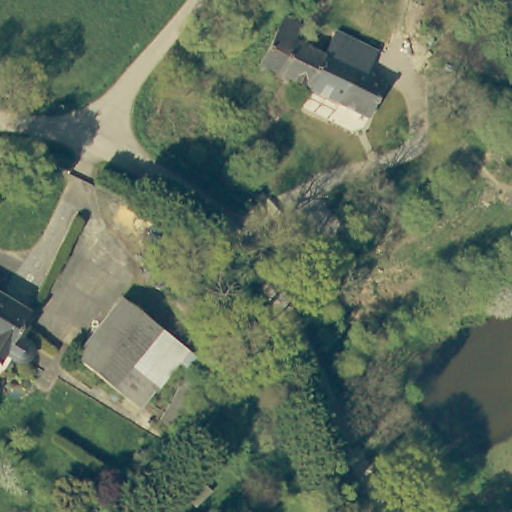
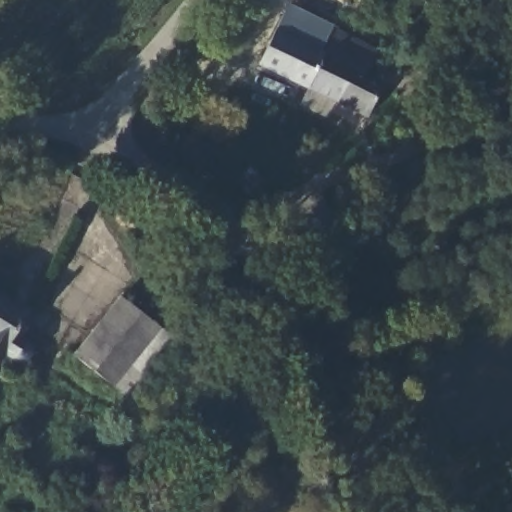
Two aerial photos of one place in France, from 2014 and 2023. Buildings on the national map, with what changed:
unchanged [(260,61),(282,13),(302,22),(295,38),(323,50),(307,85),(260,61)]
unchanged [(307,85),(323,50),(333,30),(378,50),(367,73),(362,70),(356,67),(339,102),(307,85)]
unchanged [(367,116),(339,102),(356,67),(362,70),(382,81),(367,116)]
unchanged [(0,292),(30,310),(0,358),(0,292)]
unchanged [(193,357),(147,415),(72,355),(118,297),(193,357)]
unchanged [(173,432),(157,424),(184,377),(199,385),(173,432)]

